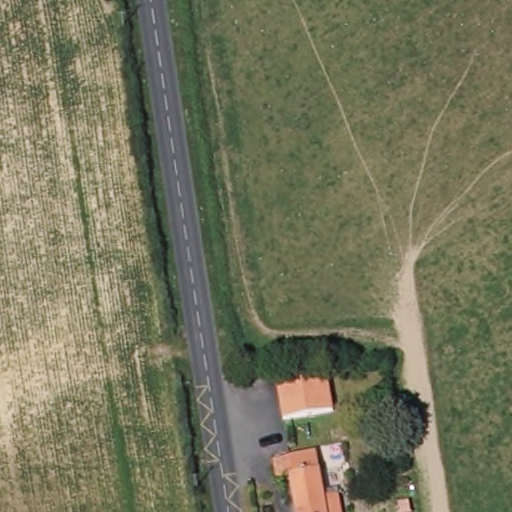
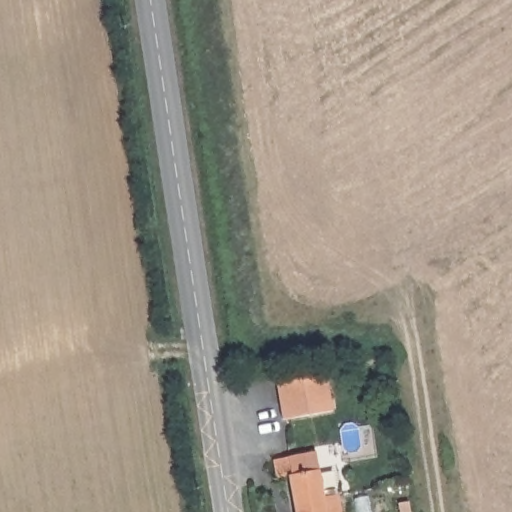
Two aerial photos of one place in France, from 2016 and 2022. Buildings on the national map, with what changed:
unchanged [(338,410),(285,419),(280,387),(333,379),(338,410)]
unchanged [(339,494),(342,512),(294,512),(288,476),(276,477),(273,458),(318,451),(326,496),(339,494)]

